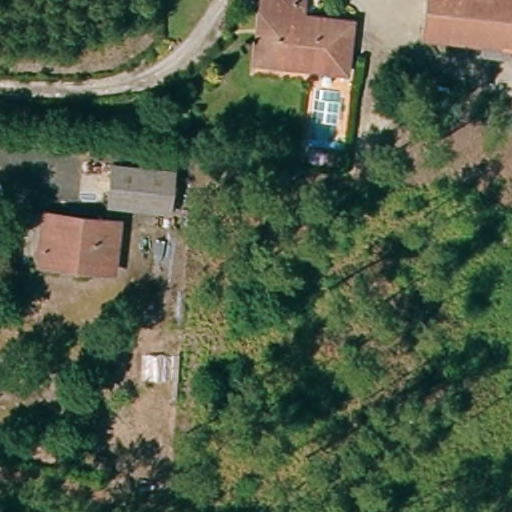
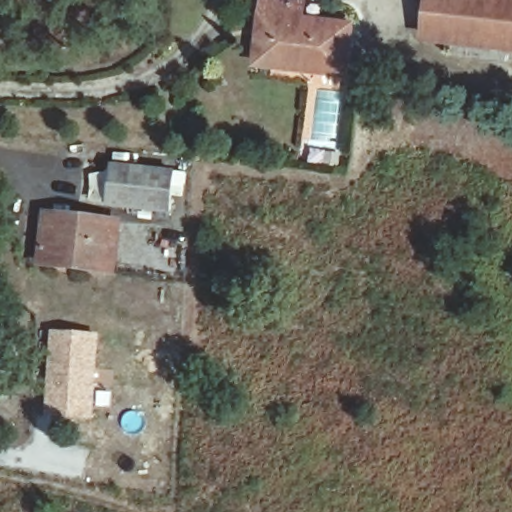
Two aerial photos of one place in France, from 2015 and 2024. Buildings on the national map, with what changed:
unchanged [(290,17),(332,21),(327,69),(255,62),(261,0),(292,0),(290,17)]
unchanged [(430,35),(433,0),(512,0),(512,43),(430,35)]
unchanged [(175,170),(180,170),(175,217),(109,211),(113,165),(175,170)]
unchanged [(117,270),(39,265),(44,210),(122,219),(117,270)]
new [(49,330),(100,333),(92,422),(42,417),(49,330)]

